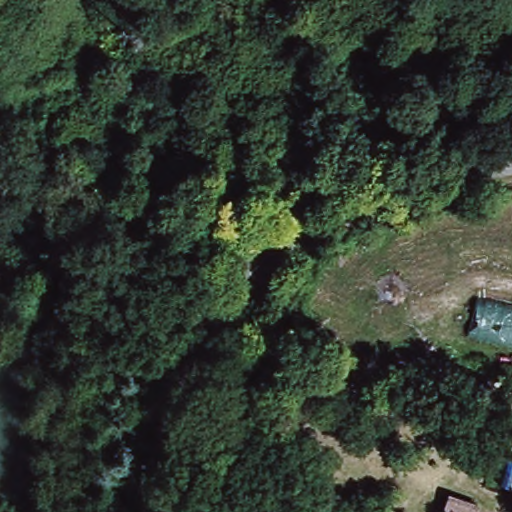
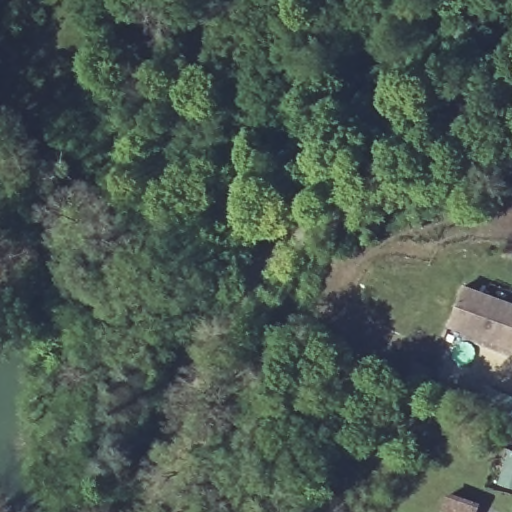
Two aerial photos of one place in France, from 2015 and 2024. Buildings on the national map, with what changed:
new [(512,353),(446,327),(462,285),(512,304),(512,353)]

